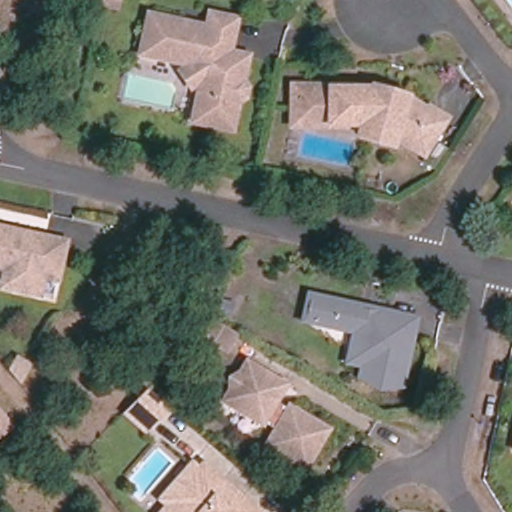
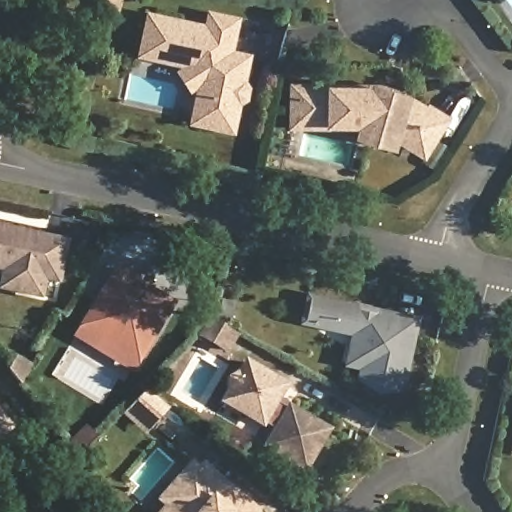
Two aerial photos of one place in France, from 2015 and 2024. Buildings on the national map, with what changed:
unchanged [(120,0),(120,3),(108,0),(120,0)]
unchanged [(195,68),(160,60),(142,56),(143,52),(143,49),(150,19),(190,28),(208,31),(211,19),(237,24),(235,38),(230,56),(249,60),(244,83),(243,87),(244,87),(248,93),(246,102),(240,105),(239,105),(233,134),(195,126),(205,83),(191,92),(182,77),(195,68)]
unchanged [(291,124),(291,90),(326,90),(326,125),(291,124)]
unchanged [(360,139),(359,125),(326,125),(326,90),(376,90),(380,95),(390,98),(396,96),(424,114),(427,109),(441,117),(421,151),(393,134),(386,145),(360,139)]
unchanged [(0,266),(0,226),(44,235),(64,240),(63,245),(55,280),(41,278),(38,294),(22,291),(0,286),(0,281),(3,267),(0,266)]
new [(132,374),(70,338),(115,266),(127,274),(129,269),(143,277),(141,282),(176,303),(132,374)]
unchanged [(351,327),(330,322),(301,315),(303,304),(307,288),(358,300),(375,304),(392,309),(415,314),(399,383),(384,384),(369,380),(356,372),(358,362),(343,358),(349,334),(351,327)]
unchanged [(244,326),(234,343),(206,327),(220,312),(244,326)]
unchanged [(17,363),(24,351),(39,359),(29,377),(17,363)]
unchanged [(274,413),(286,420),(288,416),(326,440),(302,479),(264,454),(275,436),(263,429),(261,433),(223,409),(229,398),(230,386),(240,381),(247,371),(285,394),(274,413)]
unchanged [(132,404),(136,400),(155,382),(175,399),(166,409),(156,419),(153,423),(147,417),(132,404)]
unchanged [(0,435),(0,407),(6,414),(14,424),(0,435)]
unchanged [(159,509),(170,498),(164,493),(164,492),(177,478),(196,457),(203,463),(208,458),(219,469),(226,475),(263,509),(261,512),(162,512),(159,509)]

